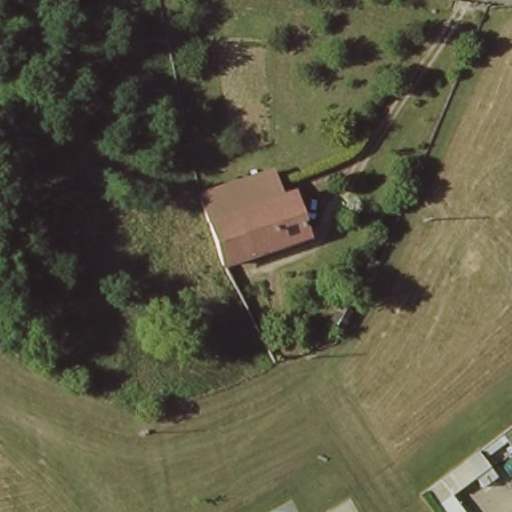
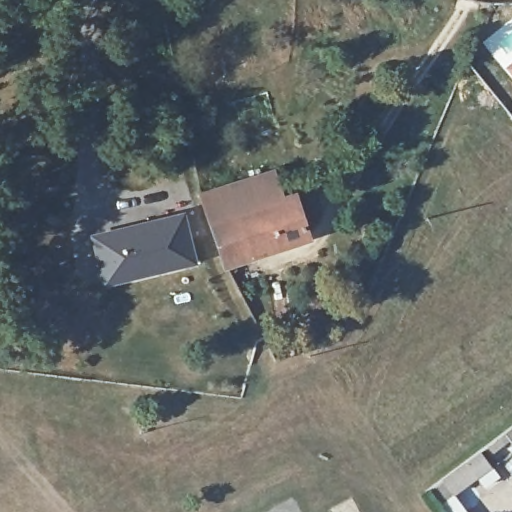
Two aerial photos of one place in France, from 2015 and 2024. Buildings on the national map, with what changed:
new [(512,55),(512,79),(500,64),(512,55)]
unchanged [(200,197),(271,174),(281,202),(292,199),(305,239),(223,267),(209,223),(200,197)]
new [(182,211),(191,262),(96,280),(88,230),(182,211)]
demolished [(174,284),(156,290),(144,247),(209,223),(223,267),(174,284)]
unchanged [(502,476),(489,487),(480,476),(457,495),(446,480),(484,451),(502,476)]

